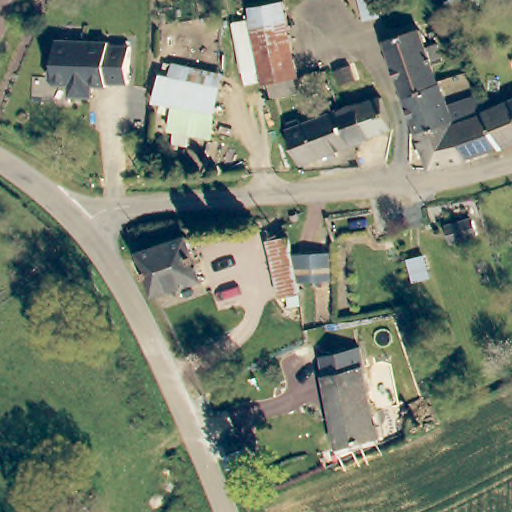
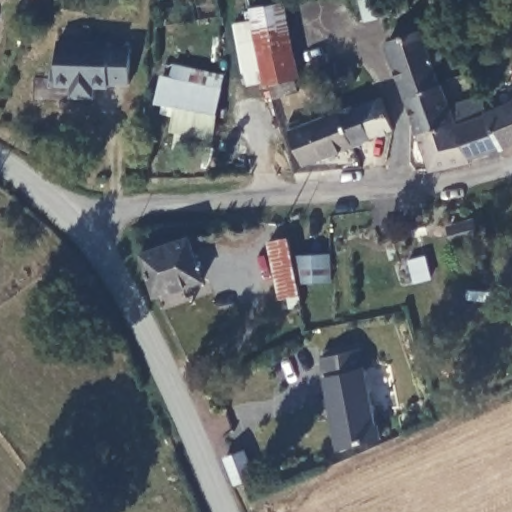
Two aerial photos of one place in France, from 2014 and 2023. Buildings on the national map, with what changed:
unchanged [(466,5),(463,0),(475,0),(466,5)]
unchanged [(265,87),(250,10),(285,4),(298,79),(272,86),(265,87)]
unchanged [(386,47),(421,34),(438,82),(403,95),(400,84),(386,47)]
unchanged [(74,99),(75,89),(60,87),(55,82),(57,72),(61,68),(62,42),(110,45),(110,48),(130,50),(129,87),(109,87),(108,91),(96,92),(95,101),(87,100),(74,99)]
unchanged [(162,75),(171,77),(177,64),(224,75),(214,116),(155,101),(162,75)]
unchanged [(403,95),(438,82),(447,109),(412,122),(403,95)]
unchanged [(387,129),(346,147),(333,112),(354,104),(352,98),(365,94),(367,99),(376,96),(387,129)]
unchanged [(481,96),(484,104),(486,111),(498,146),(466,160),(447,109),(481,96)]
unchanged [(512,100),(512,141),(498,146),(486,111),(512,100)]
unchanged [(447,109),(466,160),(430,174),(426,164),(412,122),(447,109)]
unchanged [(299,167),(285,131),(333,112),(346,147),(299,167)]
unchanged [(154,294),(140,251),(190,235),(203,277),(154,294)]
unchanged [(295,273),(301,294),(280,301),(272,267),(267,244),(287,239),(295,273)]
unchanged [(360,352),(376,444),(335,455),(322,365),(360,352)]
unchanged [(227,483),(219,460),(227,457),(239,452),(247,476),(239,479),(227,483)]

